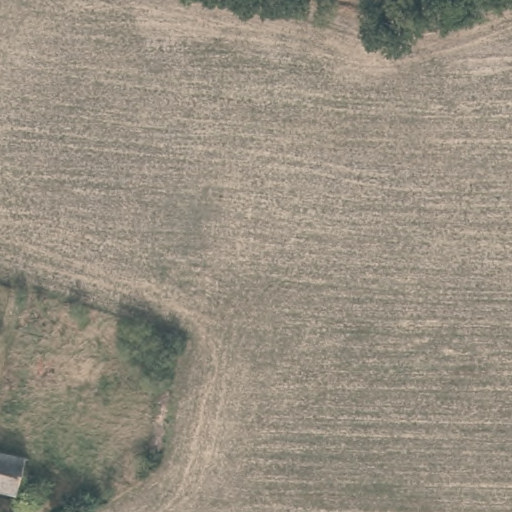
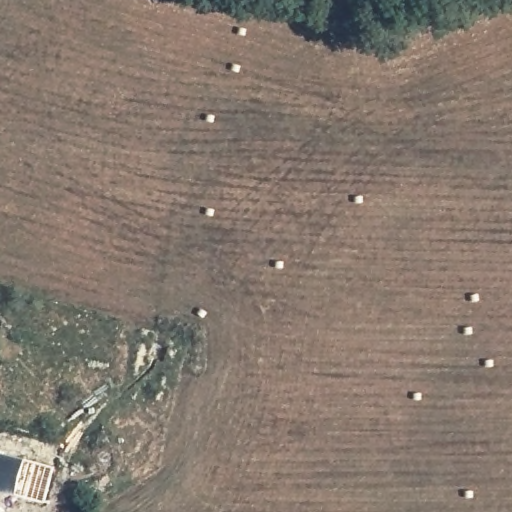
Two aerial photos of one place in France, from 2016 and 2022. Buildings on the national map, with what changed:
unchanged [(20,460),(18,476),(39,485),(36,501),(35,508),(10,504),(11,497),(0,495),(0,455),(20,460)]

